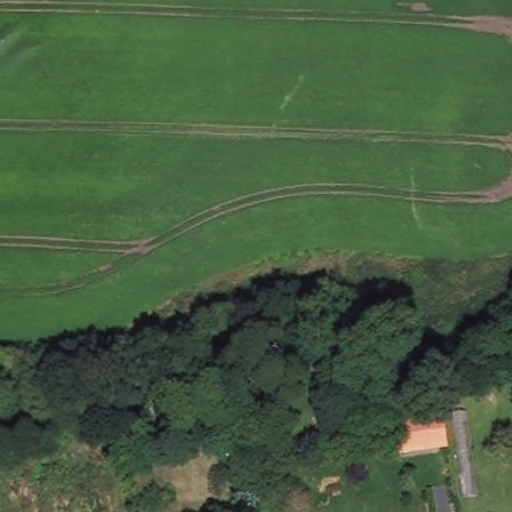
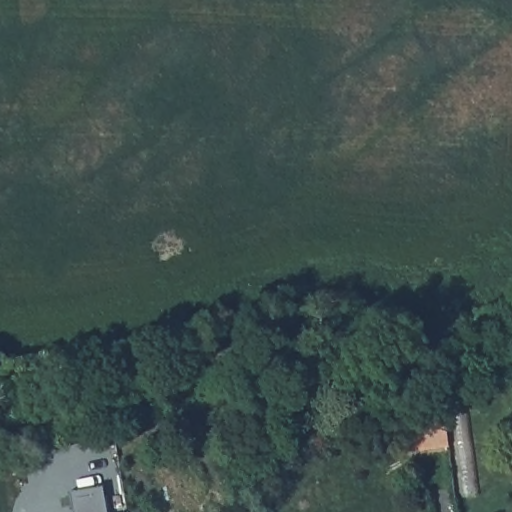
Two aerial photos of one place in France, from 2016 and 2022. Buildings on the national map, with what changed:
unchanged [(450,448),(406,454),(401,422),(446,414),(450,448)]
new [(69,493),(102,487),(106,512),(72,512),(69,493)]

